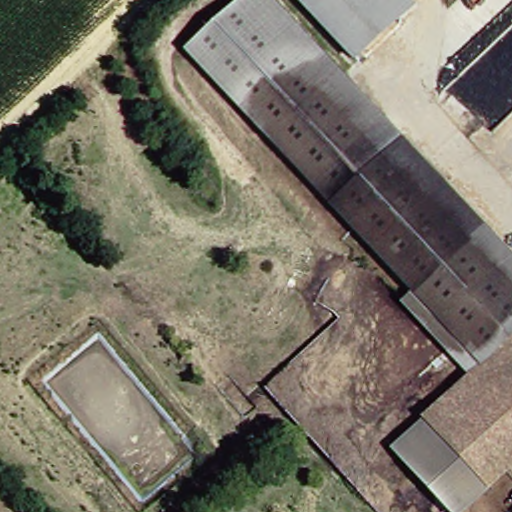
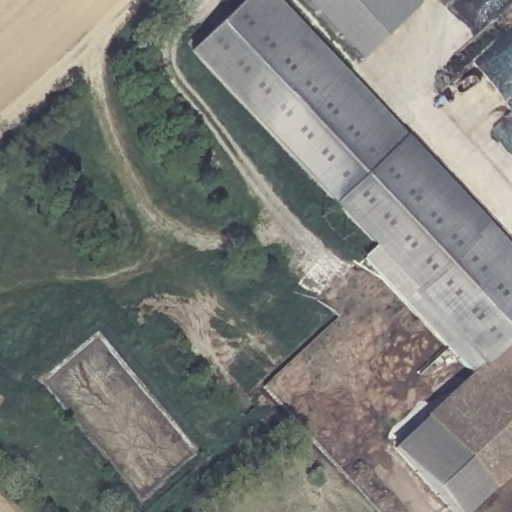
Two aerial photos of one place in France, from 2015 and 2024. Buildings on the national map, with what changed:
unchanged [(512,312),(474,337),(455,315),(295,129),(213,36),(254,0),(281,0),(377,111),(512,264),(512,312)]
unchanged [(362,51),(317,0),(394,0),(405,12),(362,51)]
unchanged [(512,312),(512,353),(498,367),(488,355),(474,337),(512,312)]
unchanged [(435,423),(498,367),(512,353),(512,468),(494,484),(435,423)]
unchanged [(494,484),(463,512),(454,512),(402,455),(435,423),(494,484)]

